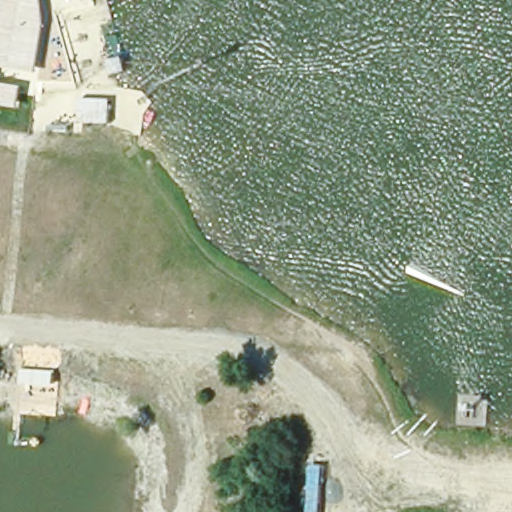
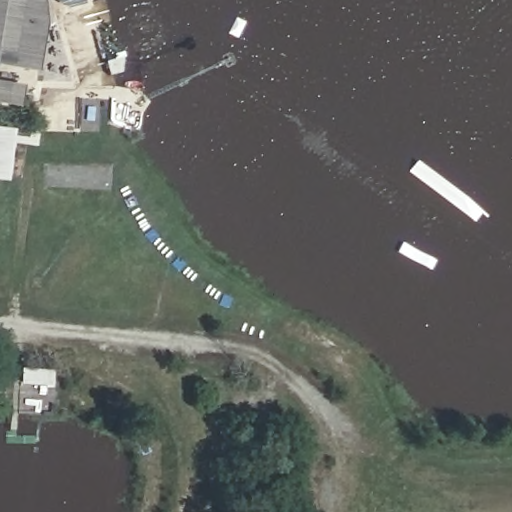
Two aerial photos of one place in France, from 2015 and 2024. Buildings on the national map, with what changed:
unchanged [(47,24),(38,73),(0,66),(0,0),(44,0),(47,24)]
unchanged [(20,107),(0,104),(0,82),(24,85),(20,107)]
new [(0,181),(0,129),(14,130),(8,182),(0,181)]

